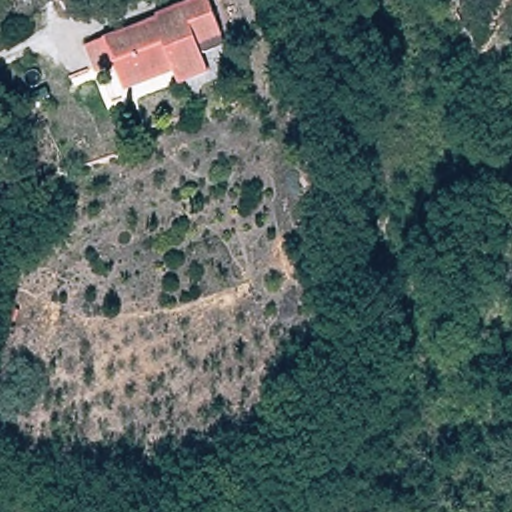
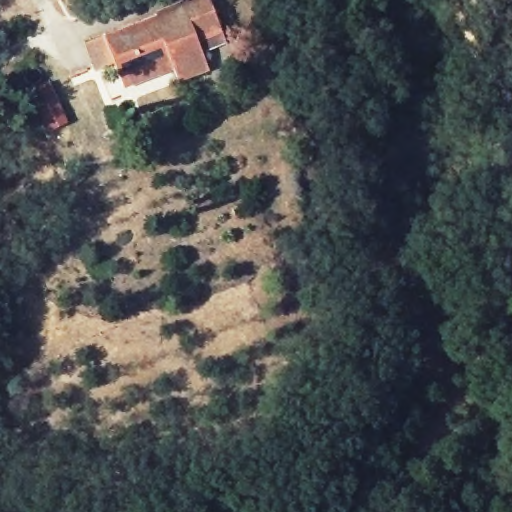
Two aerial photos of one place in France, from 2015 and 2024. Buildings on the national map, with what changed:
unchanged [(103,37),(155,17),(155,14),(193,0),(208,0),(221,33),(224,42),(200,51),(208,71),(178,83),(172,68),(122,87),(114,64),(95,71),(85,44),(103,37)]

